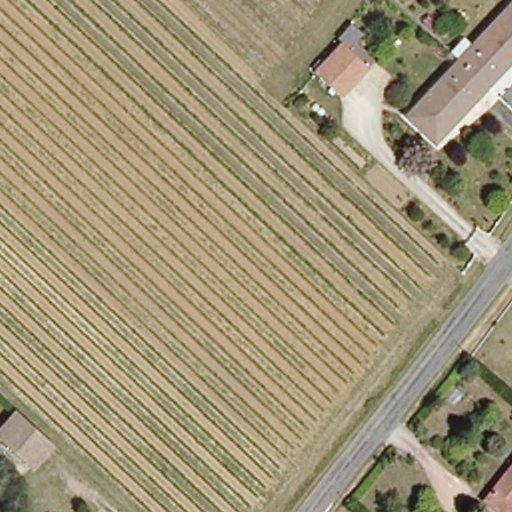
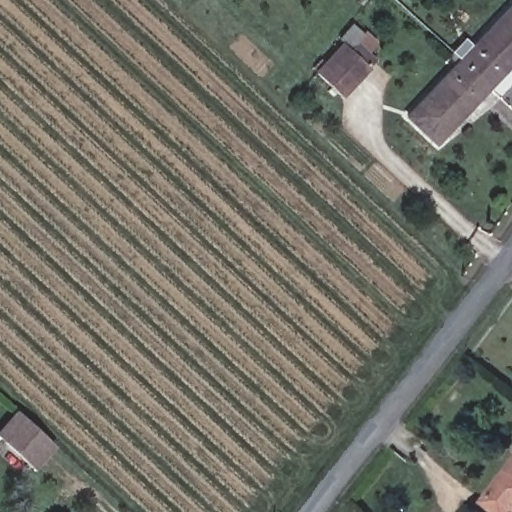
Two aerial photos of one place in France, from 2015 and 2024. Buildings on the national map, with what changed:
unchanged [(508,0),(509,0),(512,3),(512,48),(490,73),(485,71),(478,79),(454,58),(508,0)]
unchanged [(310,72),(338,42),(331,36),(346,20),(358,31),(344,46),(361,65),(335,94),(310,72)]
unchanged [(472,85),(474,90),(429,137),(401,115),(454,58),(478,79),(472,85)]
unchanged [(58,446),(35,470),(0,439),(0,434),(20,412),(58,446)]
unchanged [(512,509),(509,512),(508,512),(489,498),(512,466),(512,509)]

